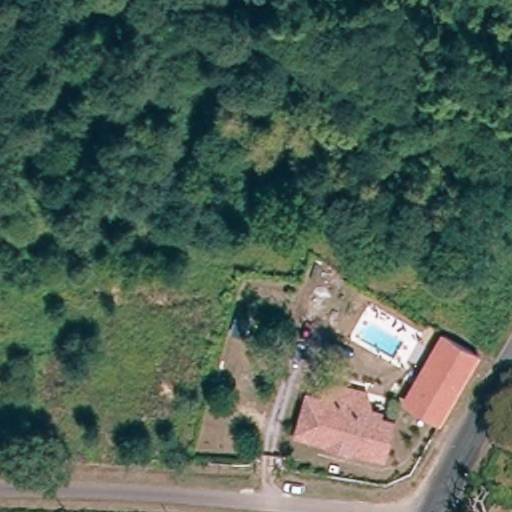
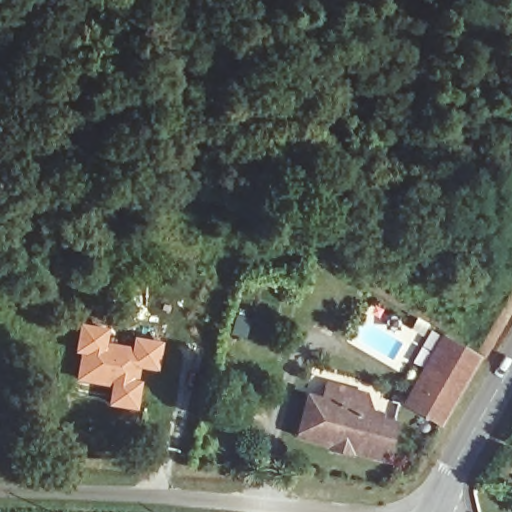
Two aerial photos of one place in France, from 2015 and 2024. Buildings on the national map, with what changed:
new [(79,322),(111,328),(107,341),(131,346),(133,336),(165,342),(159,372),(141,369),(139,379),(144,380),(138,411),(106,405),(110,387),(75,380),(79,354),(73,353),(79,322)]
unchanged [(443,426),(407,408),(440,343),(478,363),(443,426)]
unchanged [(354,395),(371,402),(366,414),(404,430),(386,471),(356,457),(353,463),(334,454),(336,448),(318,438),(306,432),(317,398),(330,403),(336,388),(354,395)]

